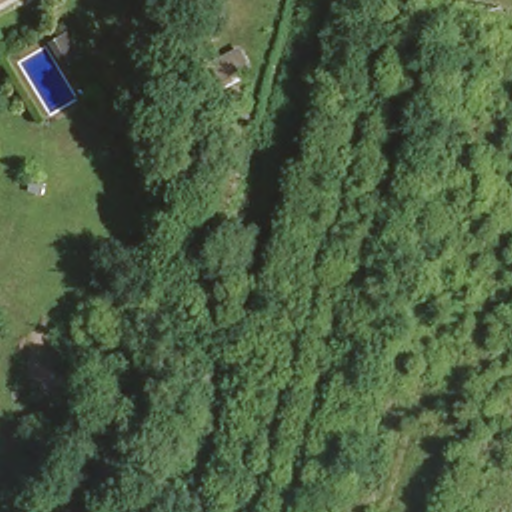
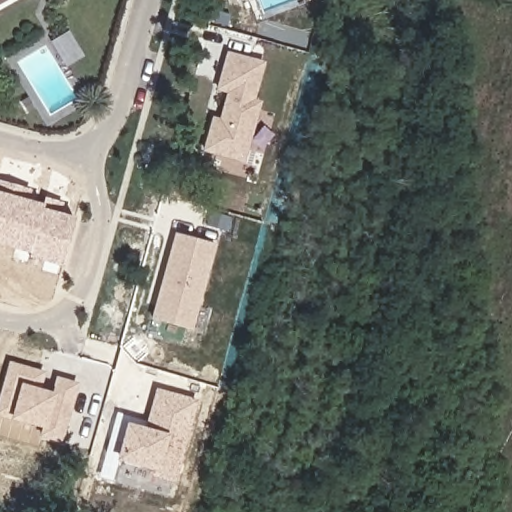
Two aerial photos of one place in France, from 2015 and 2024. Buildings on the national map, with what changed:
new [(255,104),(261,106),(246,161),(197,148),(221,52),(263,67),(255,104)]
demolished [(39,170),(45,171),(44,185),(50,186),(48,196),(35,194),(39,170)]
new [(30,253),(0,245),(0,181),(30,189),(25,200),(41,204),(44,197),(62,202),(59,212),(75,217),(63,266),(27,257),(30,253)]
new [(219,248),(196,333),(152,322),(177,237),(219,248)]
new [(44,371),(40,392),(54,394),(58,378),(77,383),(62,443),(41,437),(44,428),(0,415),(0,399),(7,364),(44,371)]
new [(196,404),(176,481),(159,476),(159,470),(120,461),(130,430),(150,436),(159,393),(196,404)]

